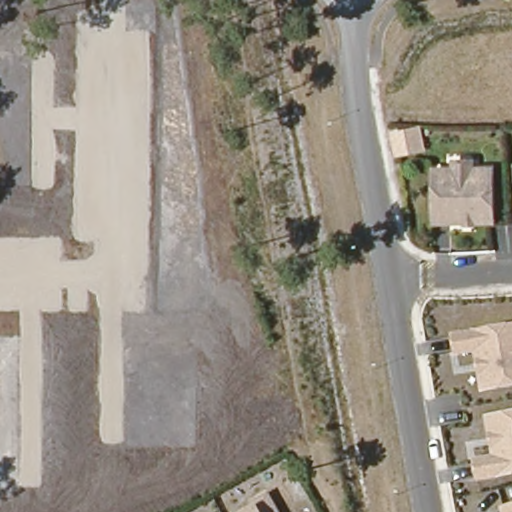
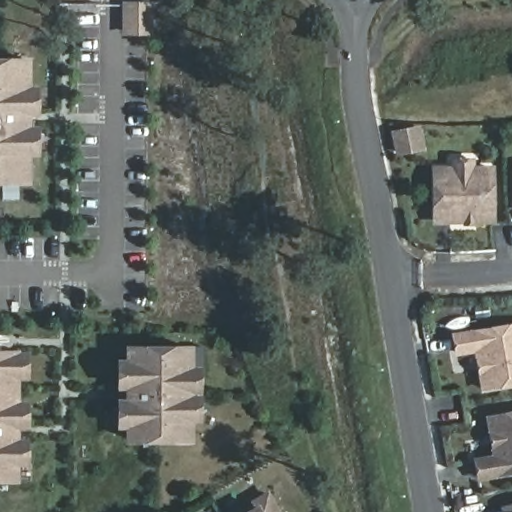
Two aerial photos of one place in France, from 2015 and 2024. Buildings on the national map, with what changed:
new [(38,85),(39,114),(30,115),(30,128),(38,128),(37,155),(30,155),(30,184),(0,184),(0,57),(30,57),(30,85),(38,85)]
unchanged [(395,157),(388,130),(420,123),(426,150),(395,157)]
unchanged [(488,172),(489,224),(432,224),(431,172),(488,172)]
unchanged [(481,393),(475,353),(456,356),(452,334),(509,323),(510,325),(512,325),(512,388),(481,393)]
new [(124,442),(124,428),(117,428),(117,397),(124,397),(124,388),(116,389),(116,358),(125,358),(125,344),(193,344),(193,365),(200,365),(200,421),(192,421),(192,442),(124,442)]
new [(0,349),(20,349),(20,352),(27,352),(29,378),(20,378),(19,402),(27,402),(28,427),(19,427),(19,438),(27,438),(28,465),(19,465),(19,481),(0,481),(0,349)]
unchanged [(476,483),(472,460),(492,455),(485,414),(512,410),(512,477),(476,483)]
unchanged [(251,505),(249,499),(262,491),(275,512),(240,512),(251,505)]
unchanged [(500,507),(512,504),(512,512),(503,512),(500,507)]

